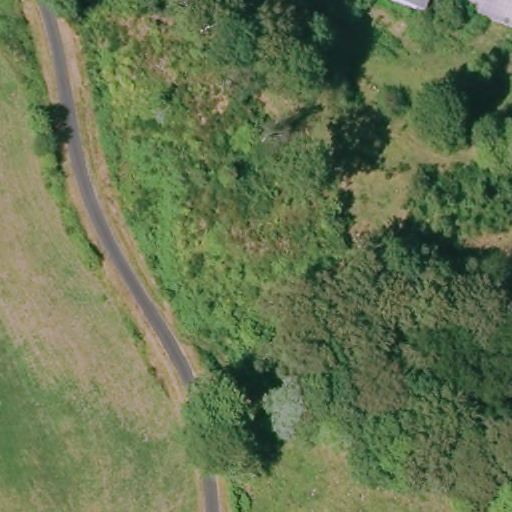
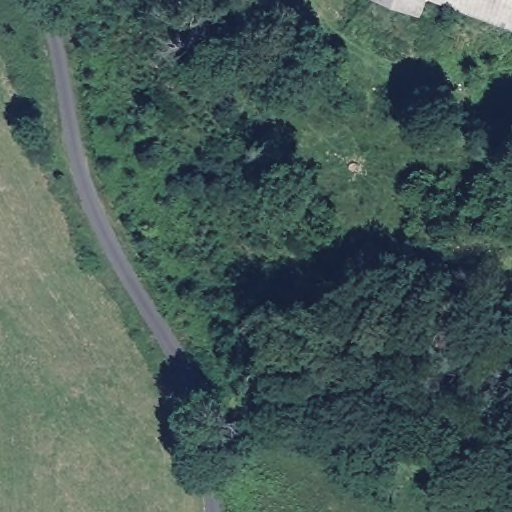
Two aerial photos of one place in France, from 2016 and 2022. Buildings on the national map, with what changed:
unchanged [(411,7),(399,0),(416,0),(411,7)]
unchanged [(512,44),(432,0),(512,0),(512,44)]

